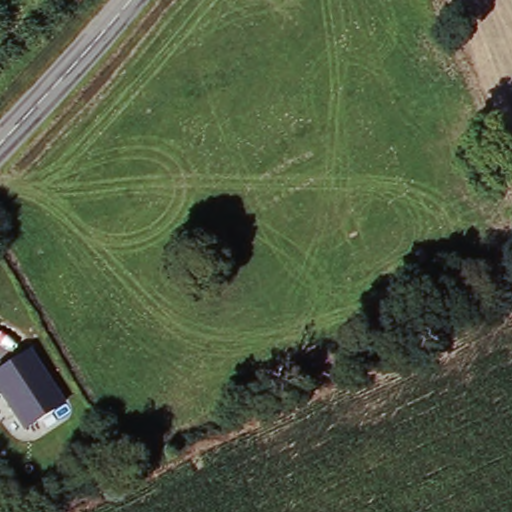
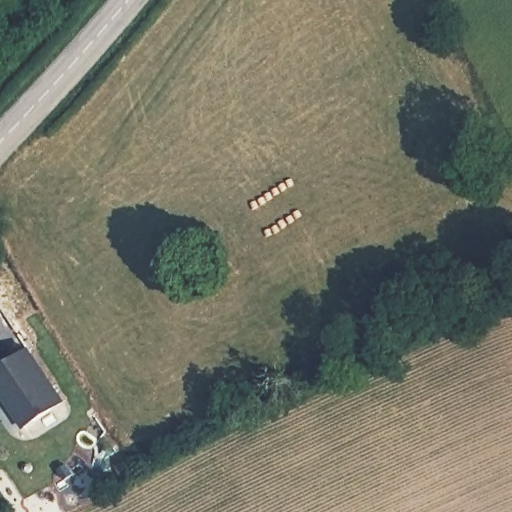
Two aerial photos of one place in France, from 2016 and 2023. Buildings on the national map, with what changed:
unchanged [(25,428),(0,387),(0,367),(35,347),(67,402),(25,428)]

